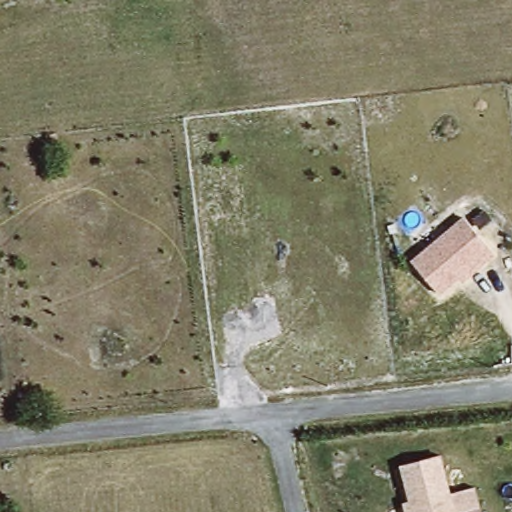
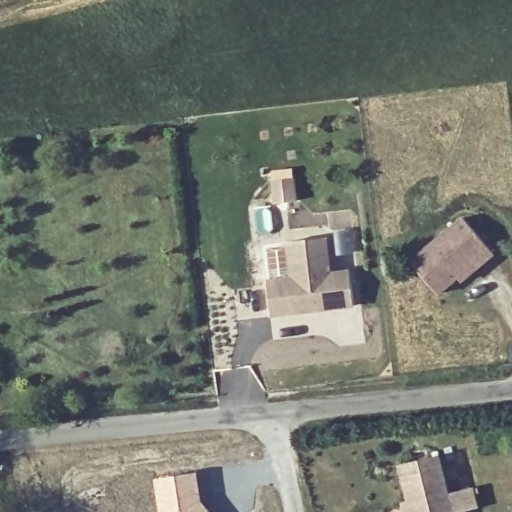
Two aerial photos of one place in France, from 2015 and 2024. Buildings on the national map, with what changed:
unchanged [(458,277),(439,292),(413,260),(463,217),(495,253),(481,265),(462,281),(458,277)]
new [(296,279),(292,243),(330,239),(333,276),(353,274),(356,307),(274,316),(271,282),(296,279)]
unchanged [(397,464),(438,454),(453,512),(403,512),(400,501),(406,499),(397,464)]
new [(198,471),(202,499),(212,512),(159,512),(154,478),(198,471)]

